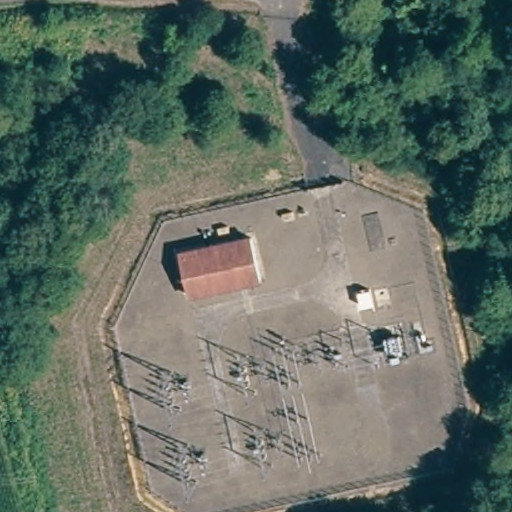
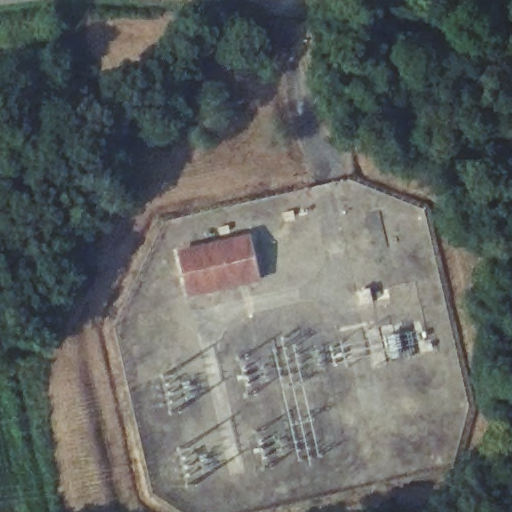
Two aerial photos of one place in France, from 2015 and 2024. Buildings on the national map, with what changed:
unchanged [(260,276),(185,294),(175,252),(250,233),(260,276)]

